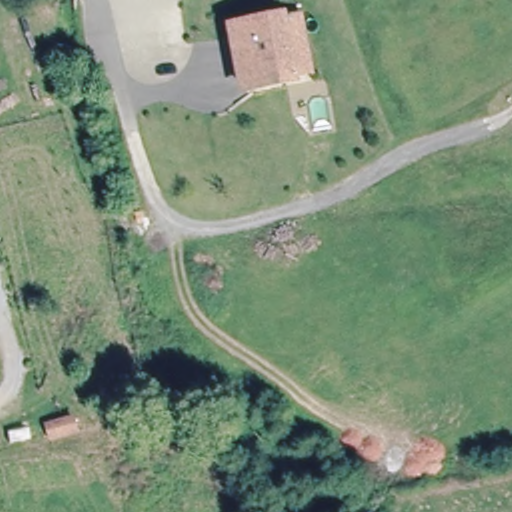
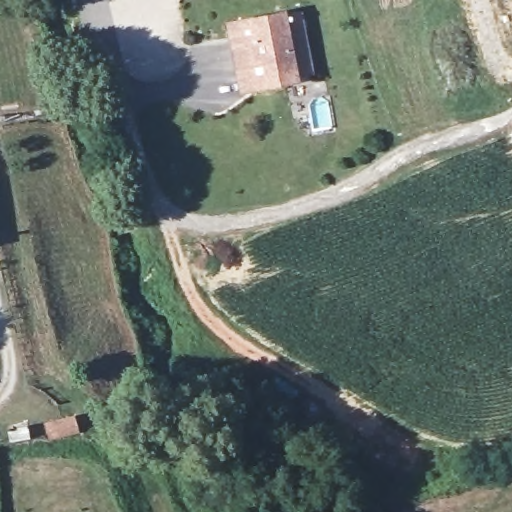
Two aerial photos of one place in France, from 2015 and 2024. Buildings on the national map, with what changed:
unchanged [(245,88),(242,67),(238,46),(234,26),(238,25),(285,16),(301,14),(312,75),(297,78),(297,80),(272,84),(245,88)]
unchanged [(77,432),(48,440),(44,424),(74,416),(77,432)]

